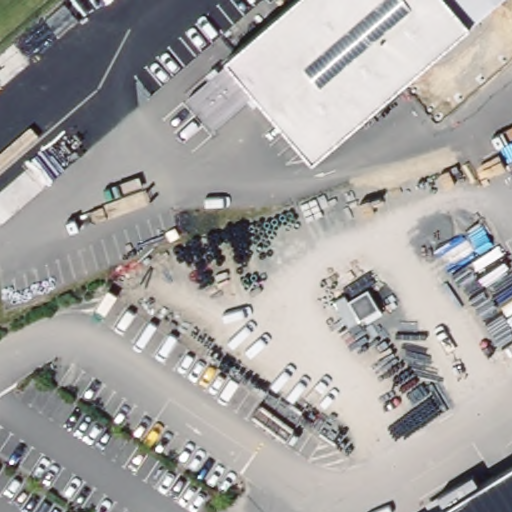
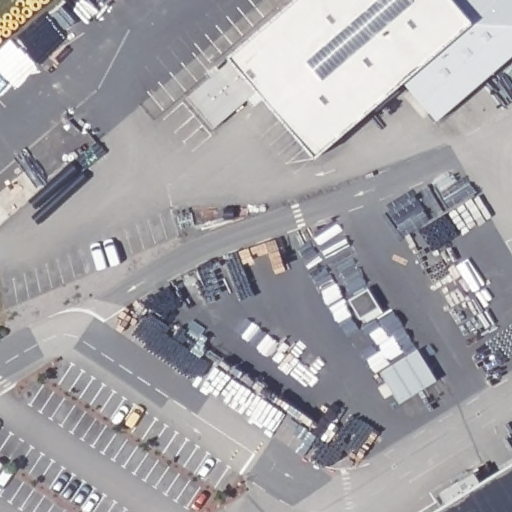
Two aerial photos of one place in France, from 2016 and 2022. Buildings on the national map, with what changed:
unchanged [(229,57),(295,0),(500,0),(314,160),(229,57)]
new [(405,82),(500,0),(512,0),(512,57),(439,120),(405,82)]
unchanged [(451,505),(512,467),(512,512),(441,512),(451,505)]

